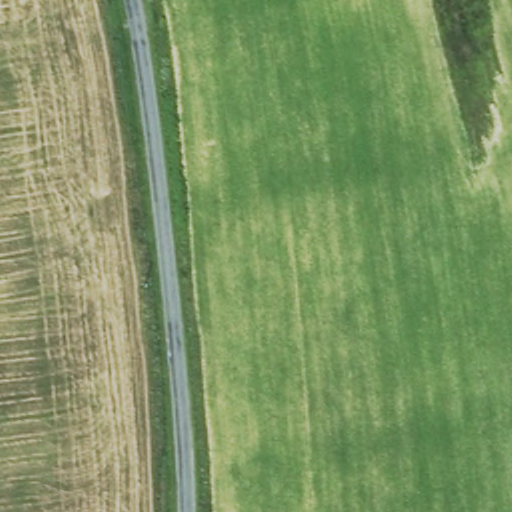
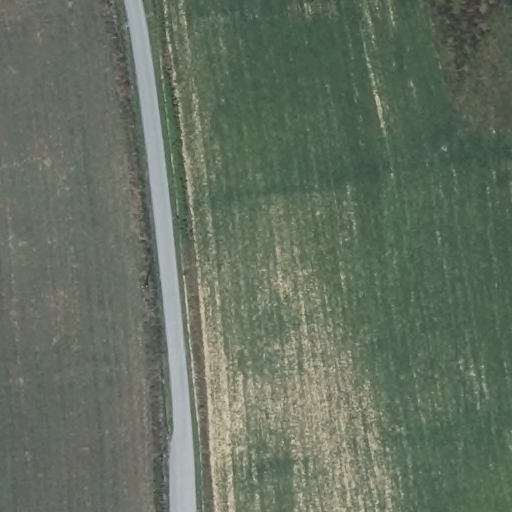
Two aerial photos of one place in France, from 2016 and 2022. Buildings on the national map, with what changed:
[]

